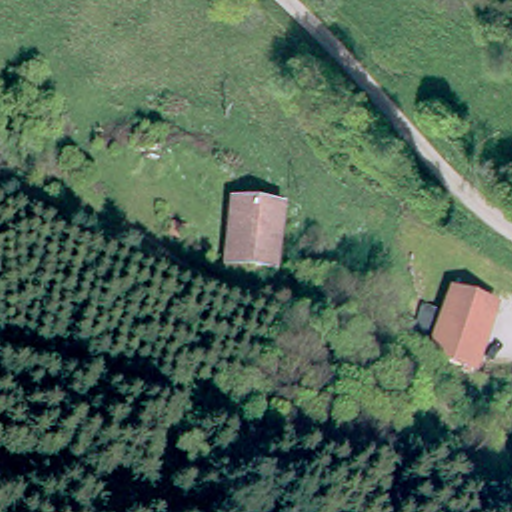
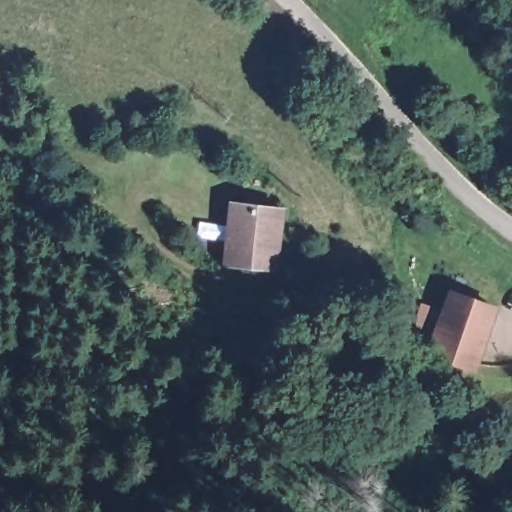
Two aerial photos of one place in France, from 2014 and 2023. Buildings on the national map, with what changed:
unchanged [(247,201),(248,194),(256,195),(255,202),(280,203),(275,264),(227,261),(230,200),(247,201)]
unchanged [(187,252),(192,240),(210,246),(205,262),(187,252)]
unchanged [(432,349),(454,284),(495,298),(479,345),(474,362),(432,349)]

